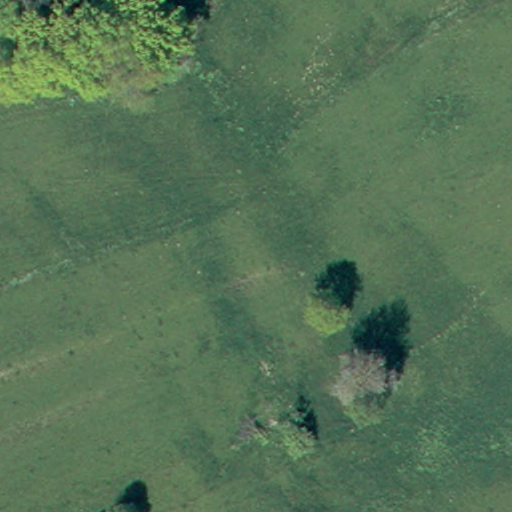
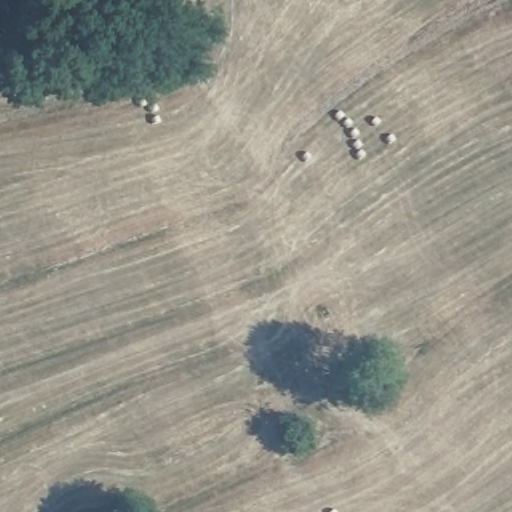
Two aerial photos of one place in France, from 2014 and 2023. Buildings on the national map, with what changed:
unchanged [(100,512),(92,512),(99,508),(100,512)]

